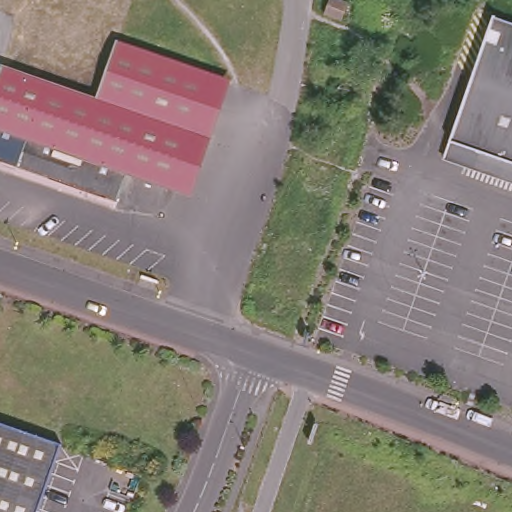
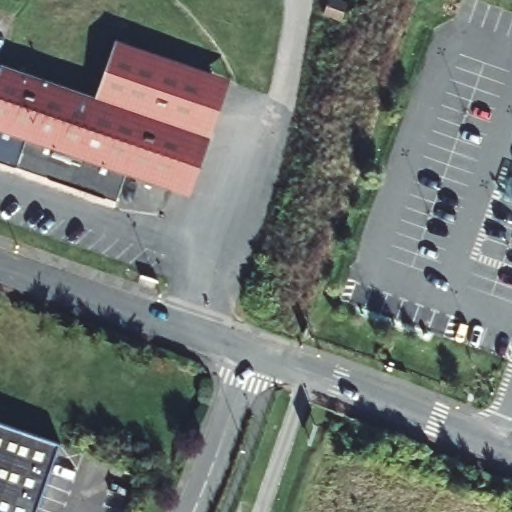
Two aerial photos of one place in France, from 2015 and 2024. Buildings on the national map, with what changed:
unchanged [(340,21),(321,14),(326,0),(338,0),(345,2),(340,21)]
demolished [(512,16),(512,157),(453,136),(497,11),(512,16)]
unchanged [(83,122),(94,94),(90,92),(110,35),(207,69),(166,186),(120,170),(72,153),(83,122)]
unchanged [(94,94),(83,122),(72,153),(120,170),(110,198),(11,162),(0,158),(0,60),(87,92),(90,92),(94,94)]
unchanged [(207,69),(225,75),(185,192),(166,186),(207,69)]
unchanged [(59,438),(34,512),(0,512),(0,418),(59,438)]

